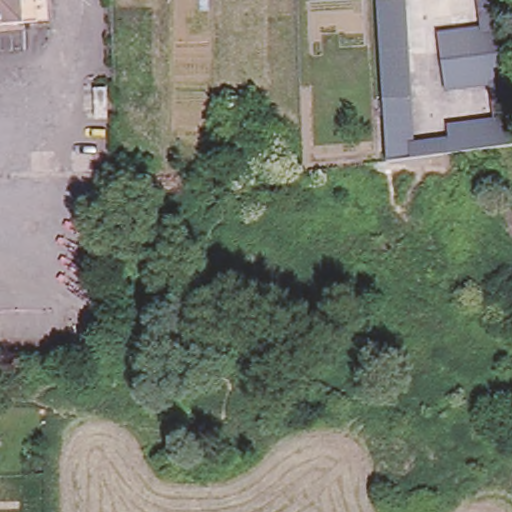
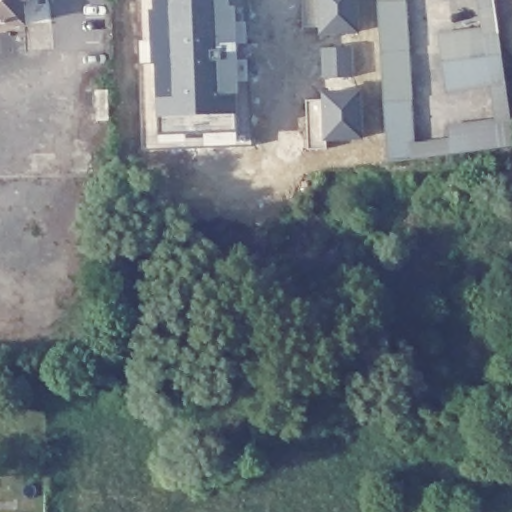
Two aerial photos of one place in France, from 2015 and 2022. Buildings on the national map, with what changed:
unchanged [(23,25),(0,27),(0,0),(22,0),(23,25)]
new [(229,7),(235,7),(235,22),(246,22),(246,44),(235,45),(236,60),(248,59),(251,147),(146,150),(141,0),(228,0),(229,7)]
new [(358,35),(318,35),(317,0),(357,0),(358,35)]
unchanged [(378,7),(378,0),(406,0),(406,5),(407,21),(407,36),(408,51),(412,99),(413,114),(413,129),(414,138),(449,136),(447,125),(463,123),(479,121),(495,119),(510,117),(512,129),(512,145),(498,147),(497,147),(482,150),(467,151),(451,154),(415,158),(387,162),(387,145),(387,140),(386,130),(385,115),(384,100),(382,52),(380,36),(380,22),(378,7)]
new [(350,48),(352,77),(322,77),(321,49),(350,48)]
unchanged [(486,55),(501,52),(505,81),(490,84),(475,86),(460,88),(445,90),(440,60),(455,59),(470,56),(486,55)]
new [(358,93),(360,141),(323,142),(320,92),(358,93)]

